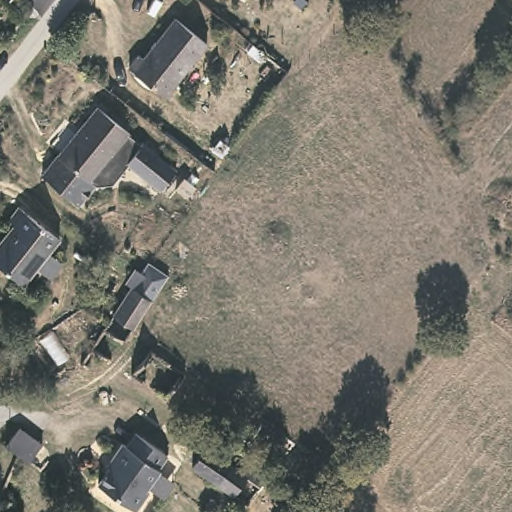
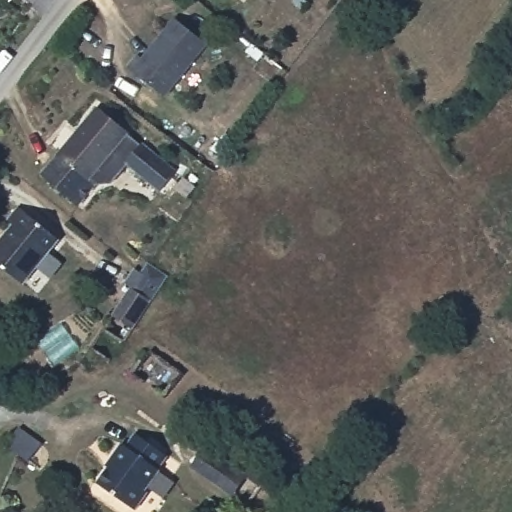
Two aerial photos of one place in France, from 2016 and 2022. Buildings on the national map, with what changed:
unchanged [(175,25),(205,51),(162,100),(128,70),(140,57),(145,60),(175,25)]
unchanged [(141,146),(144,143),(177,168),(160,191),(129,166),(110,191),(100,192),(95,188),(78,208),(40,179),(94,109),(141,146)]
unchanged [(179,180),(190,187),(181,199),(171,191),(179,180)]
unchanged [(22,293),(0,276),(0,247),(12,231),(5,225),(16,212),(59,245),(22,293)]
unchanged [(153,292),(132,327),(109,314),(130,278),(153,292)]
unchanged [(17,432),(38,443),(41,447),(36,456),(31,464),(15,458),(7,449),(17,432)]
unchanged [(166,464),(157,476),(158,478),(149,489),(142,489),(144,496),(146,498),(135,512),(129,512),(96,488),(113,463),(111,461),(121,447),(125,450),(135,437),(166,464)]
unchanged [(216,494),(232,473),(241,479),(228,502),(227,503),(216,494)]

